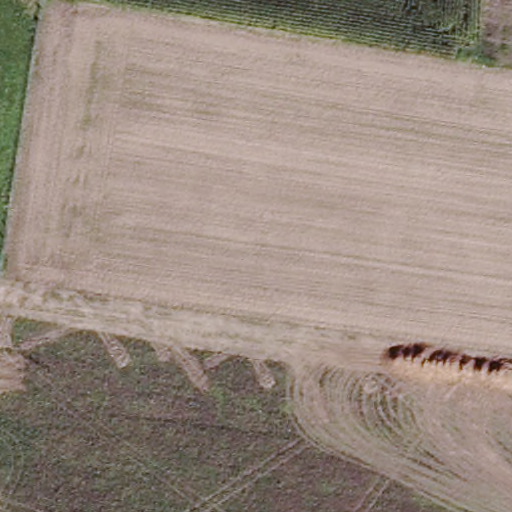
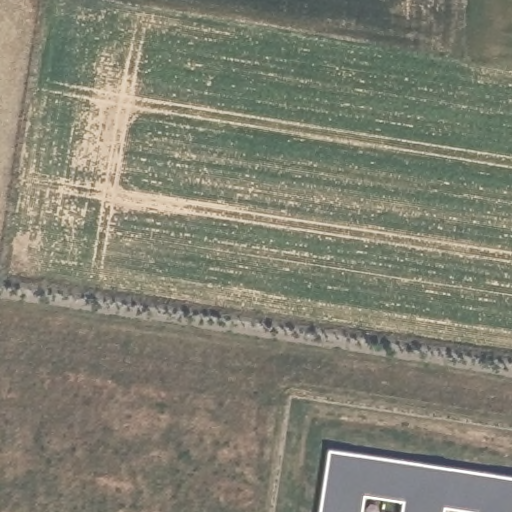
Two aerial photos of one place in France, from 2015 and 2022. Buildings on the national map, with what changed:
new [(512,477),(512,508),(511,512),(470,512),(470,511),(437,507),(436,512),(397,512),(398,501),(359,496),(357,512),(312,512),(322,450),(512,477)]

